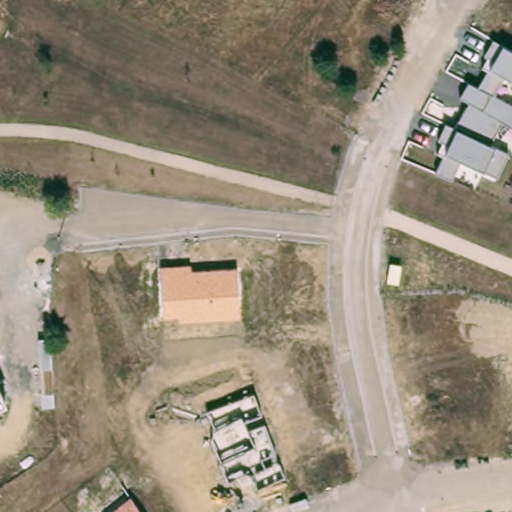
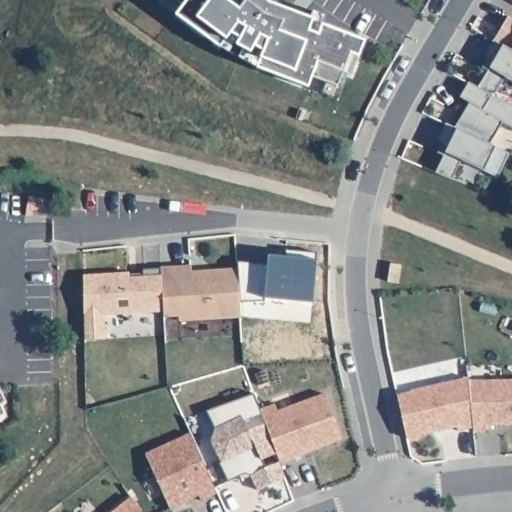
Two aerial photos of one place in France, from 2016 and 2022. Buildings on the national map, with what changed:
new [(365,40),(360,54),(350,51),(344,70),(338,84),(311,74),(307,84),(258,65),(220,45),(178,13),(183,5),(176,0),(267,0),(268,1),(365,40)]
new [(501,45),(493,39),(508,15),(512,18),(512,52),(501,45)]
unchanged [(442,156),(435,154),(441,142),(436,139),(444,121),(453,126),(467,102),(460,96),(468,81),(477,87),(486,71),(482,69),(489,56),(485,54),(493,39),(501,45),(512,52),(512,80),(505,75),(494,95),(512,105),(512,127),(502,121),(490,143),(510,154),(499,178),(482,171),(460,161),(452,180),(435,172),(442,156)]
unchanged [(160,266),(192,265),(192,271),(238,268),(240,318),(178,323),(177,316),(163,317),(160,266)]
new [(85,339),(83,275),(130,271),(130,276),(161,275),(162,311),(105,313),(105,338),(85,339)]
new [(407,436),(397,394),(468,376),(469,380),(512,379),(512,423),(491,424),(491,430),(474,430),(474,427),(458,430),(458,425),(407,436)]
unchanged [(0,407),(0,391),(6,404),(0,407)]
unchanged [(209,440),(215,430),(208,410),(255,392),(287,477),(258,490),(250,471),(227,481),(209,440)]
new [(281,461),(261,408),(275,403),(278,410),(325,393),(342,439),(281,461)]
new [(189,433),(216,493),(201,500),(198,495),(170,508),(145,453),(189,433)]
unchanged [(131,497),(141,512),(110,512),(131,497)]

